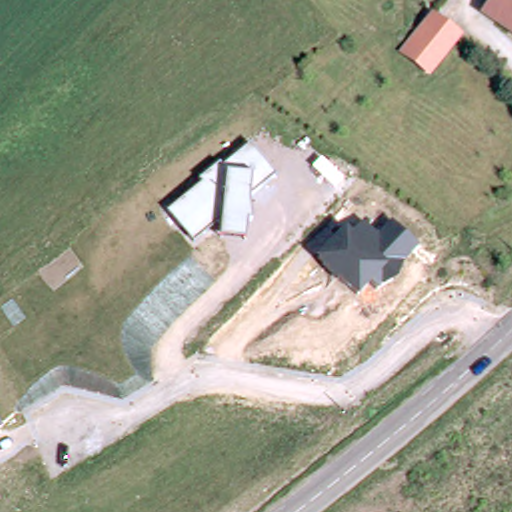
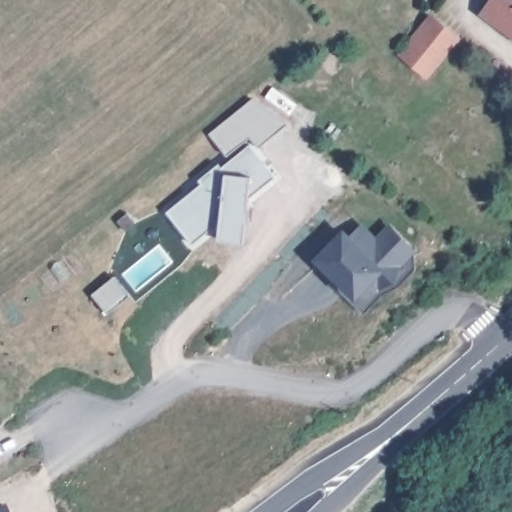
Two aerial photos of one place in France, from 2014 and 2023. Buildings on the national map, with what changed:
unchanged [(512,0),(512,26),(489,0),(512,0)]
unchanged [(432,13),(461,38),(428,77),(399,55),(432,13)]
new [(253,99),(289,124),(259,149),(251,138),(228,156),(209,134),(253,99)]
unchanged [(248,197),(248,205),(251,221),(245,222),(244,241),(218,238),(219,222),(193,243),(166,211),(201,184),(198,179),(221,162),(223,165),(250,144),(274,176),(248,197)]
unchanged [(417,250),(403,265),(396,281),(381,288),(377,291),(371,284),(357,298),(316,258),(343,229),(350,235),(362,224),(376,236),(391,222),(417,250)]
new [(114,276),(130,296),(119,305),(108,314),(93,295),(103,286),(114,276)]
unchanged [(1,427),(0,427),(0,425),(1,427)]
new [(6,506),(10,512),(0,512),(0,510),(6,506)]

